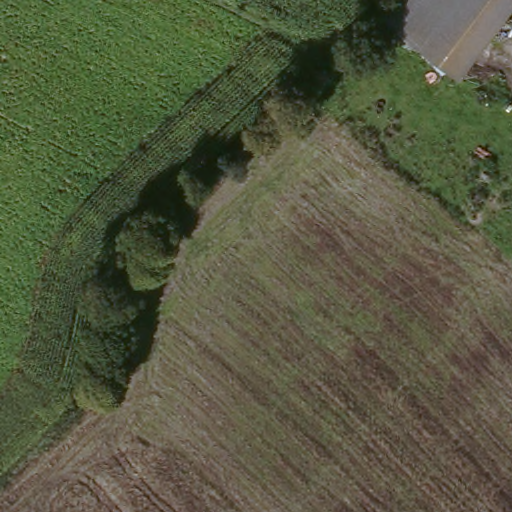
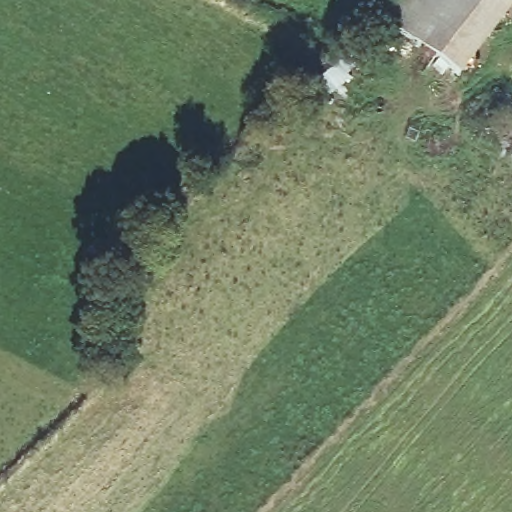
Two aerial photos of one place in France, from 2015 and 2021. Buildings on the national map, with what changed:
unchanged [(375,20),(390,0),(512,0),(512,10),(461,81),(375,20)]

